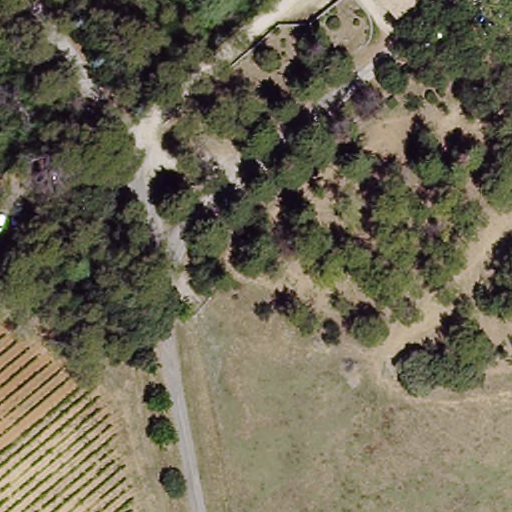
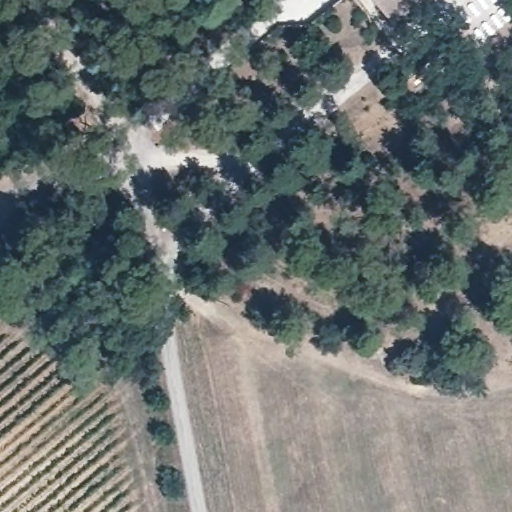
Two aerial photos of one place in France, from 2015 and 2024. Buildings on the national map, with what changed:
unchanged [(382,0),(423,0),(400,21),(382,0)]

